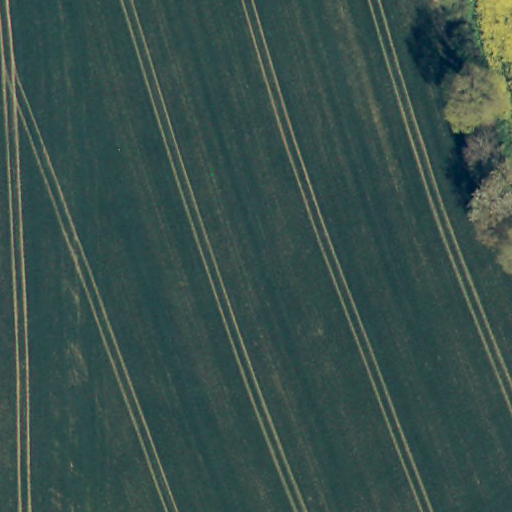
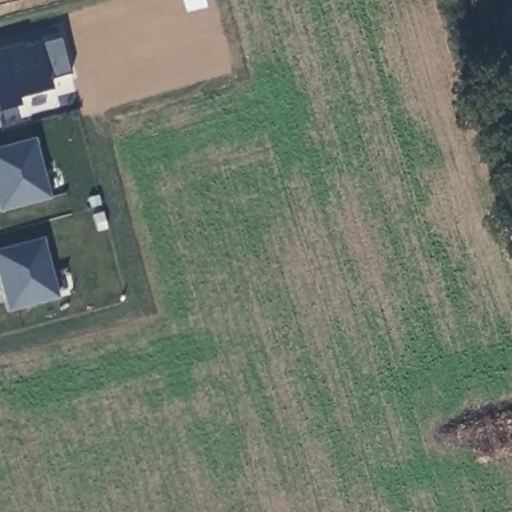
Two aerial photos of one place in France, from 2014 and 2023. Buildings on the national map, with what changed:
new [(0,211),(0,209),(0,148),(34,137),(50,197),(0,211)]
new [(7,311),(0,282),(0,249),(42,236),(58,298),(7,311)]

